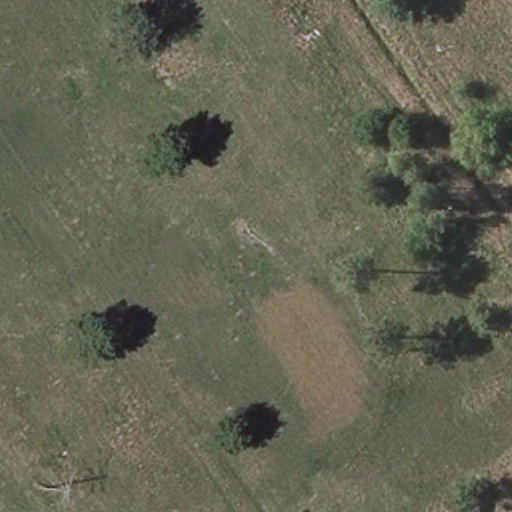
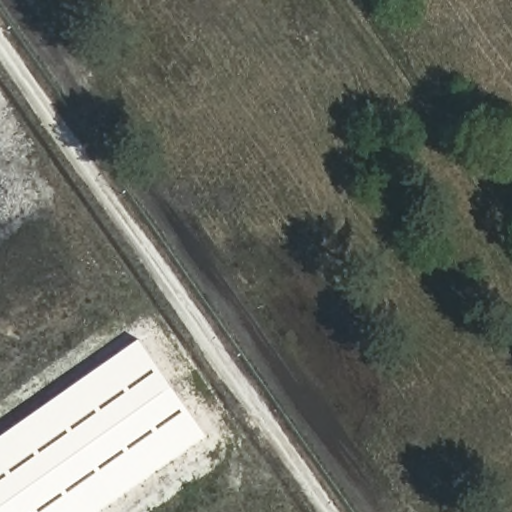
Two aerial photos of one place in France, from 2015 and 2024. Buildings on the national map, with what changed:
new [(139,339),(208,437),(104,512),(0,512),(0,434),(139,339)]

